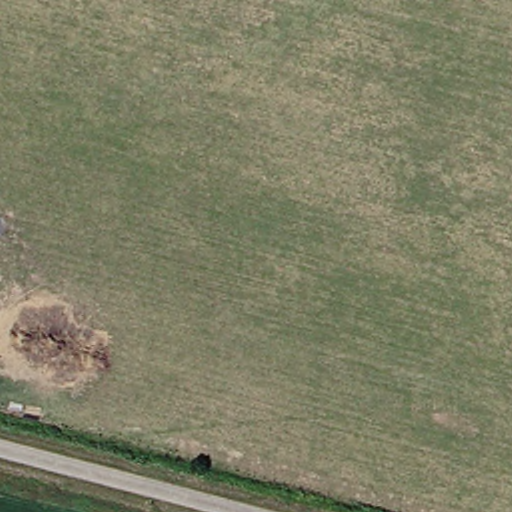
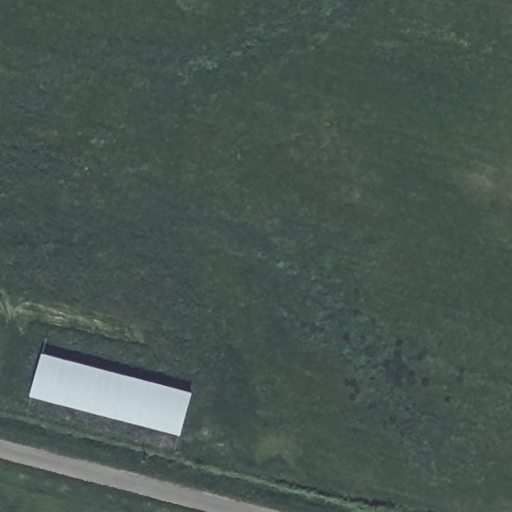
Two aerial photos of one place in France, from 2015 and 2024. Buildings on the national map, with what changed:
new [(192,392),(182,433),(31,394),(42,353),(192,392)]

